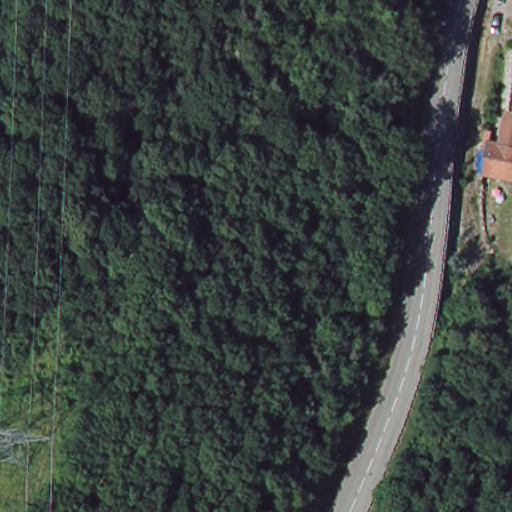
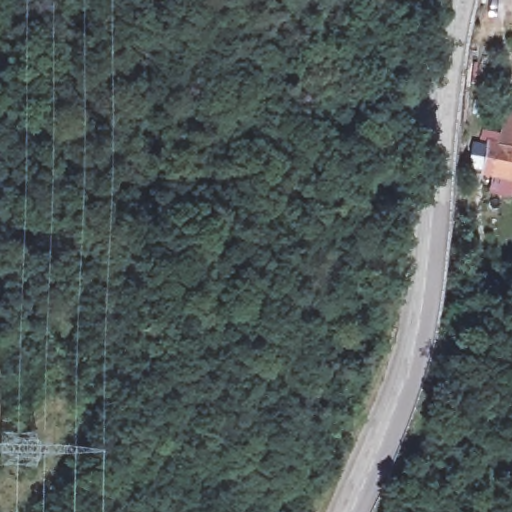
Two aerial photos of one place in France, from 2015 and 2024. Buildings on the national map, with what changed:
unchanged [(496,153),(511,155),(512,149),(512,184),(491,180),(474,177),(480,150),(496,153)]

